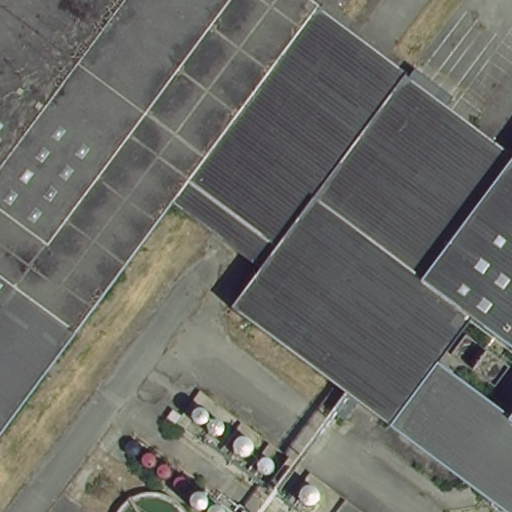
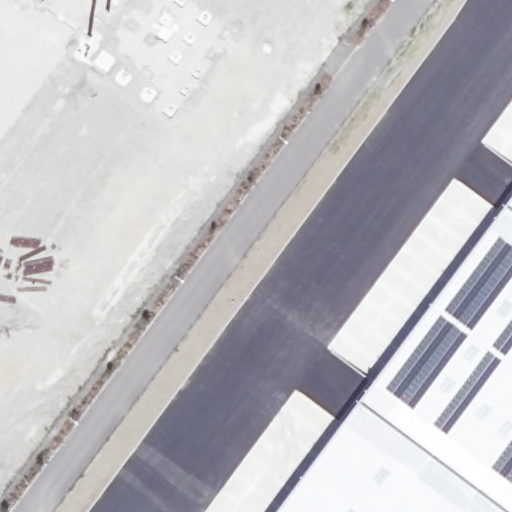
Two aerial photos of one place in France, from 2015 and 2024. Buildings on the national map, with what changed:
demolished [(347,30),(201,226),(175,206),(0,449),(0,0),(307,0),(347,30)]
demolished [(347,30),(407,75),(399,87),(234,310),(231,308),(260,270),(201,226),(347,30)]
demolished [(506,512),(353,398),(341,415),(328,405),(341,389),(234,310),(399,87),(407,75),(512,154),(512,512),(506,512)]
new [(360,402),(383,374),(470,260),(512,200),(512,512),(286,512),(313,474),(360,402)]
demolished [(254,512),(252,512),(253,511),(254,512)]

